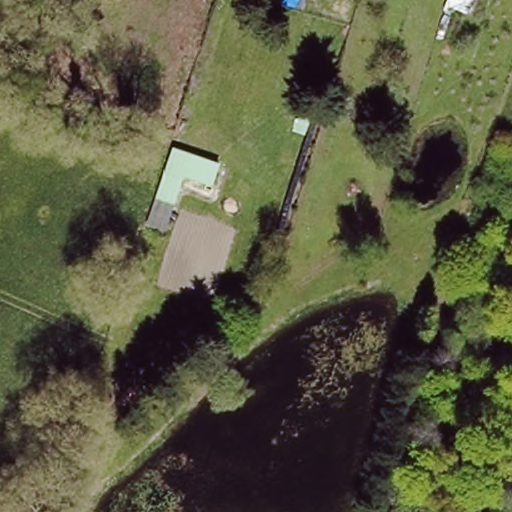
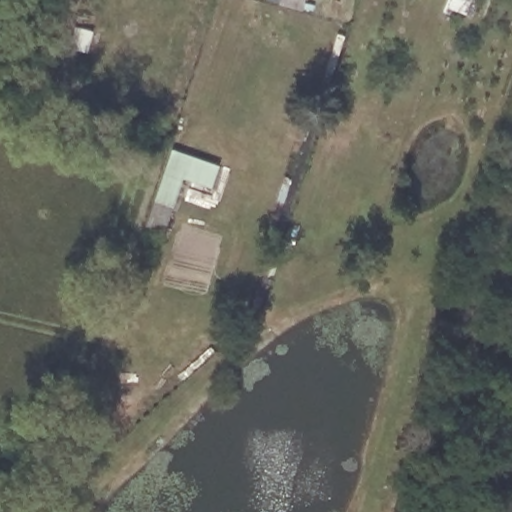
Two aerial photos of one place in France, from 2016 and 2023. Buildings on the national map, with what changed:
unchanged [(184,182),(180,196),(162,190),(170,163),(172,156),(219,170),(217,178),(213,192),(184,182)]

